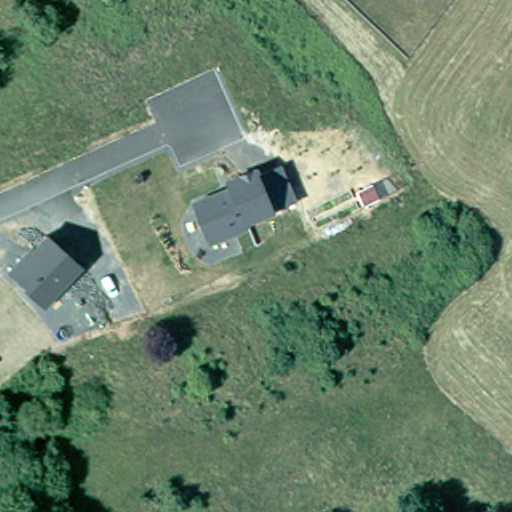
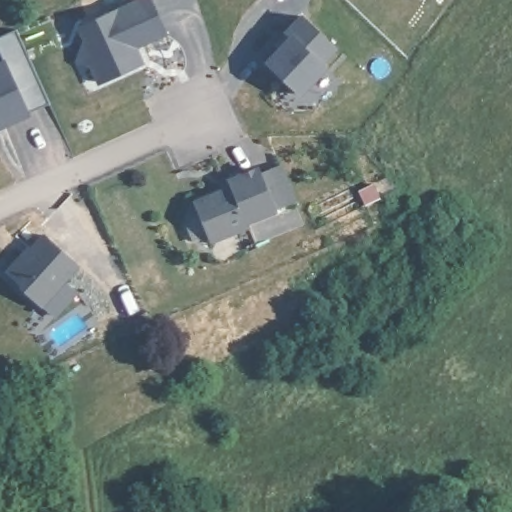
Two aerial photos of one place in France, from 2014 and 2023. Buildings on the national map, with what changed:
new [(98,83),(90,66),(75,63),(85,41),(78,25),(134,0),(152,0),(169,34),(141,49),(147,63),(98,83)]
new [(285,32),(302,14),(337,47),(323,62),(330,68),(302,95),(267,61),(279,49),(276,43),(285,32)]
new [(32,116),(0,131),(0,62),(5,59),(32,116)]
unchanged [(230,184),(225,176),(260,164),(263,169),(284,161),(297,197),(273,204),(275,210),(248,220),(250,224),(210,239),(192,199),(230,184)]
unchanged [(80,266),(41,309),(22,294),(22,287),(5,272),(43,232),(80,266)]

